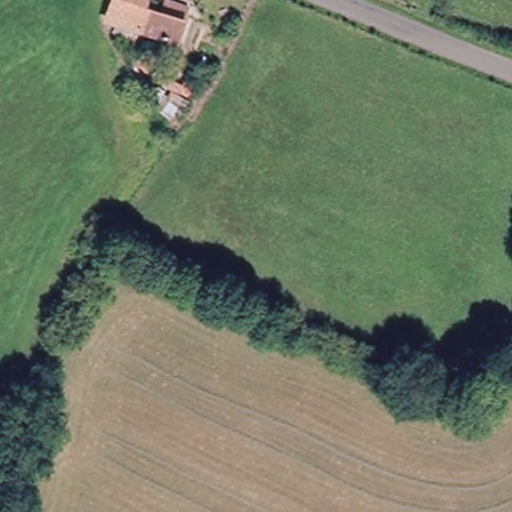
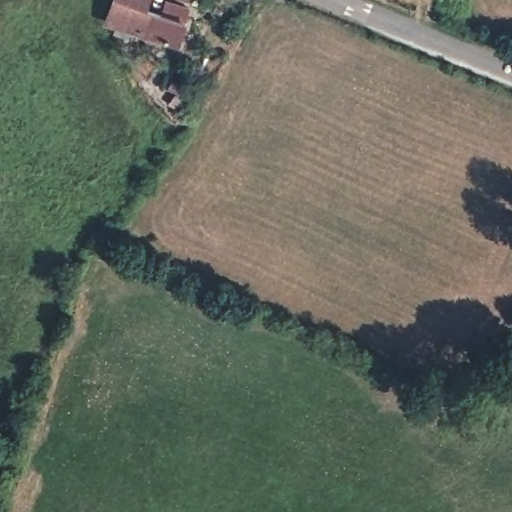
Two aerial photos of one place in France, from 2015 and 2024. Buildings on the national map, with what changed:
unchanged [(117,0),(145,0),(144,2),(165,8),(168,0),(187,0),(191,2),(189,9),(176,46),(118,26),(108,22),(117,0)]

